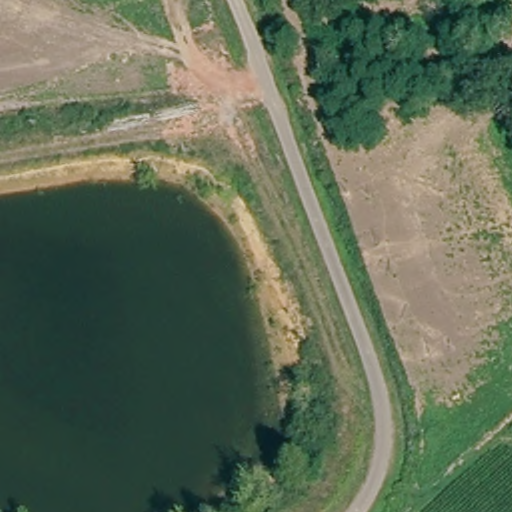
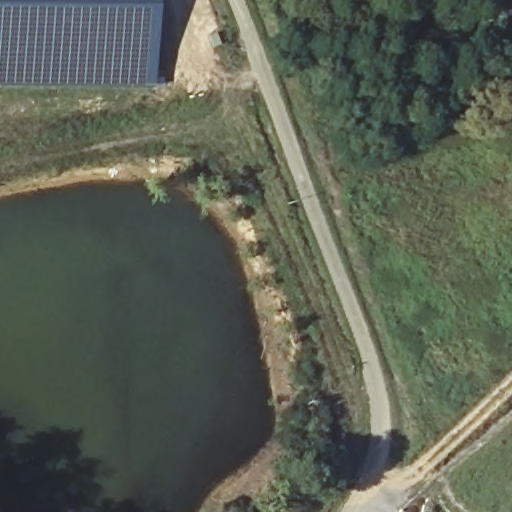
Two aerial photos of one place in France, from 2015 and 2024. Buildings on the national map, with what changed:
new [(26,87),(0,86),(0,0),(152,0),(152,86),(26,87)]

